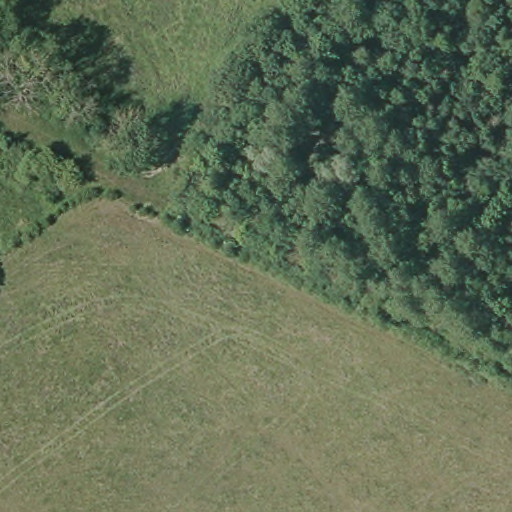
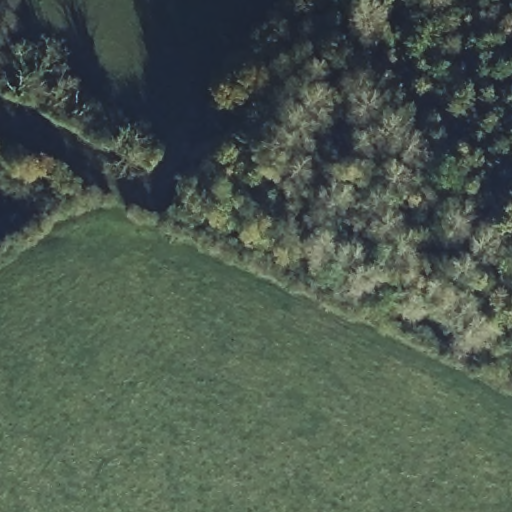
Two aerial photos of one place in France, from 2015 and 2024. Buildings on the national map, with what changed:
[]

